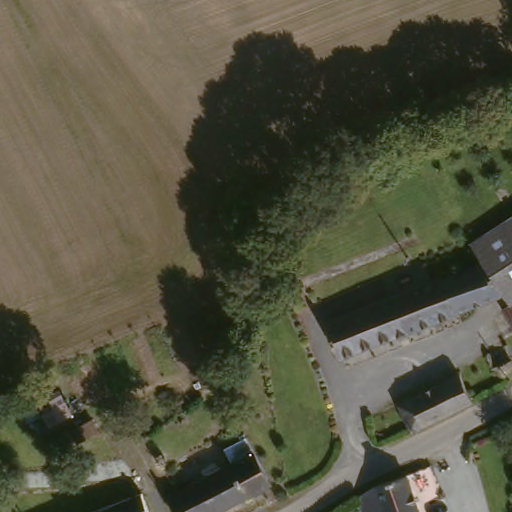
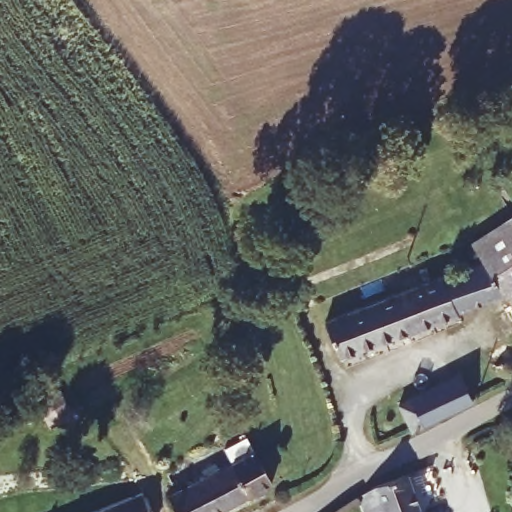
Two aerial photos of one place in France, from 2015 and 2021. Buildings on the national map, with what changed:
unchanged [(508,290),(494,255),(486,259),(477,242),(512,221),(512,292),(510,289),(508,290)]
unchanged [(486,259),(494,255),(508,290),(343,357),(331,323),(486,259)]
unchanged [(512,305),(512,309),(510,306),(512,305)]
unchanged [(466,373),(480,397),(421,428),(418,422),(407,402),(466,373)]
unchanged [(224,512),(183,512),(175,500),(236,462),(227,448),(244,438),(249,435),(275,480),(224,512)]
unchanged [(414,474),(427,512),(370,512),(367,503),(365,494),(414,474)]
unchanged [(161,494),(171,512),(98,512),(157,495),(161,494)]

